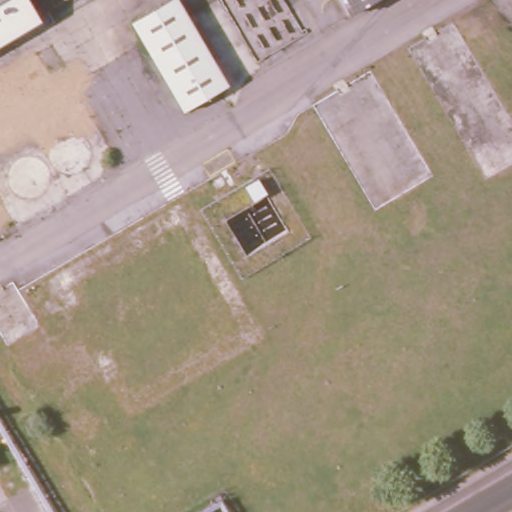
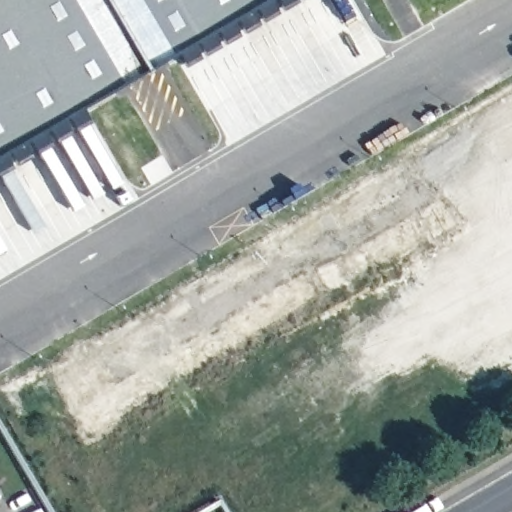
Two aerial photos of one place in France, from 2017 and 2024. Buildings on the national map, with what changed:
demolished [(0,1),(0,0),(1,0),(0,1)]
demolished [(0,39),(0,1),(1,0),(33,0),(42,15),(0,39)]
new [(0,156),(0,0),(268,0),(0,156)]
demolished [(160,0),(176,0),(226,79),(180,106),(130,17),(160,0)]
demolished [(347,5),(345,0),(355,0),(347,5)]
demolished [(243,254),(222,215),(249,199),(241,184),(256,175),(288,227),(243,254)]

